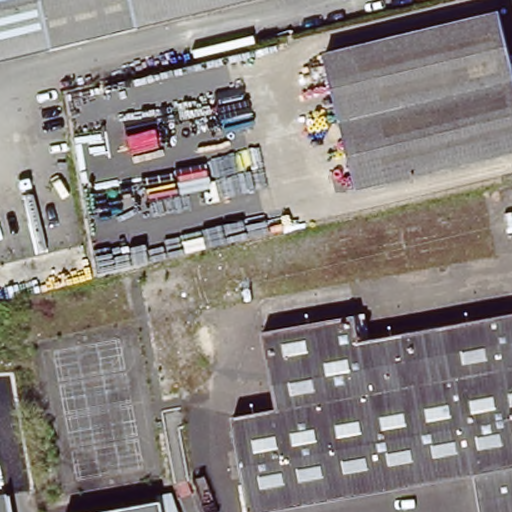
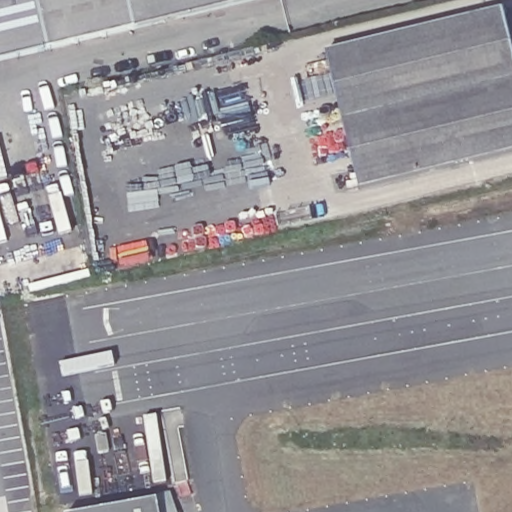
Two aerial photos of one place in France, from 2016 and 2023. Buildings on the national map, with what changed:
unchanged [(45,46),(0,57),(0,0),(36,0),(45,46)]
unchanged [(134,26),(45,46),(36,0),(128,0),(134,26)]
unchanged [(134,26),(128,0),(243,0),(134,26)]
unchanged [(512,60),(512,158),(359,195),(327,60),(502,16),(512,60)]
demolished [(488,512),(482,478),(293,512),(250,512),(234,422),(278,413),(265,335),(367,316),(372,343),(413,336),(512,318),(512,512),(488,512)]
unchanged [(173,491),(180,512),(161,512),(160,502),(159,494),(173,491)]
unchanged [(5,512),(0,512),(0,498),(3,497),(5,512)]
unchanged [(161,512),(105,512),(160,502),(161,512)]

